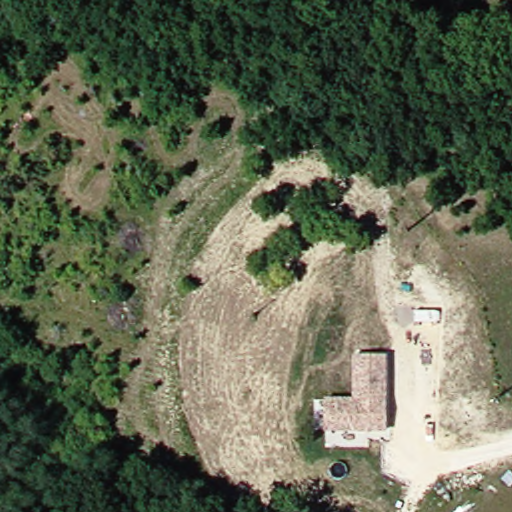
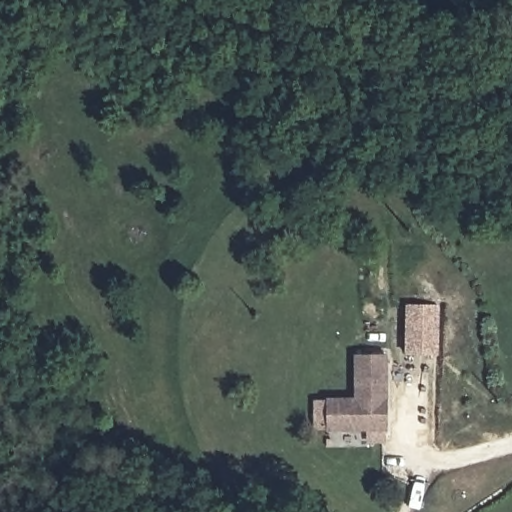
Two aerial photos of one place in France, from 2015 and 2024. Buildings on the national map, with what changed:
new [(439,305),(439,355),(404,355),(406,304),(439,305)]
unchanged [(381,434),(321,425),(326,395),(355,400),(362,355),(391,359),(385,403),(381,434)]

